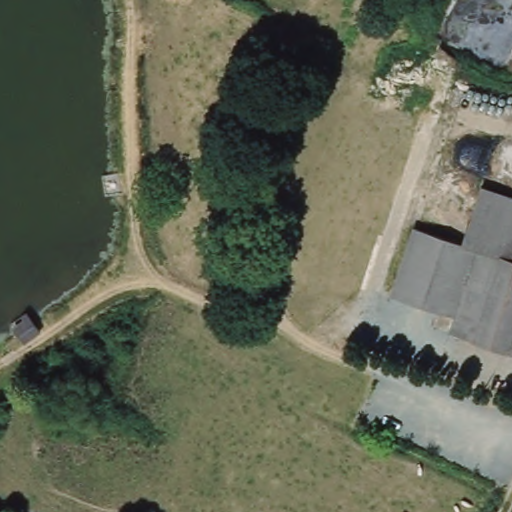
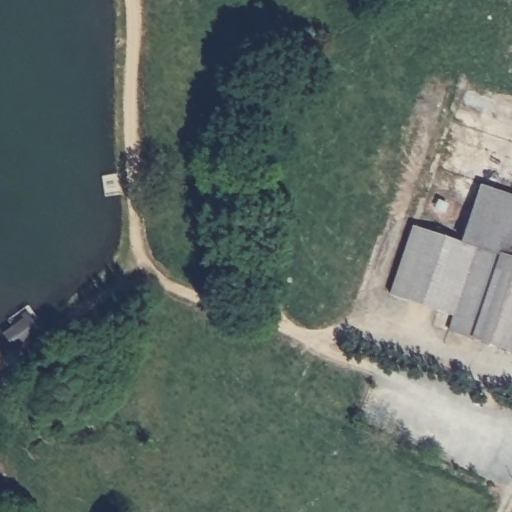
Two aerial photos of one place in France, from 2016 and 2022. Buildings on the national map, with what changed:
unchanged [(457,317),(397,294),(420,228),(465,244),(484,189),(502,195),(500,202),(457,317)]
unchanged [(512,199),(512,209),(500,202),(502,195),(512,199)]
unchanged [(512,354),(452,334),(457,317),(500,202),(512,209),(512,354)]

